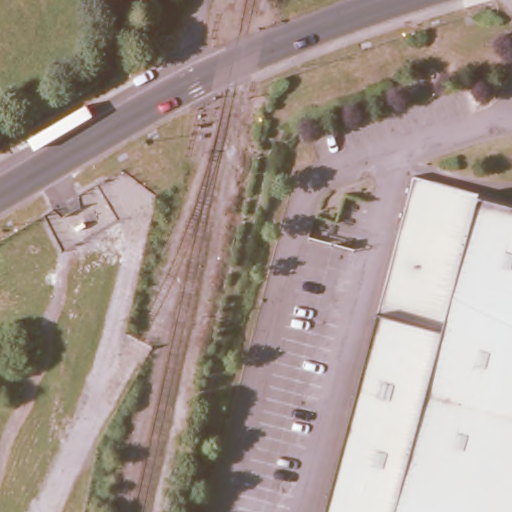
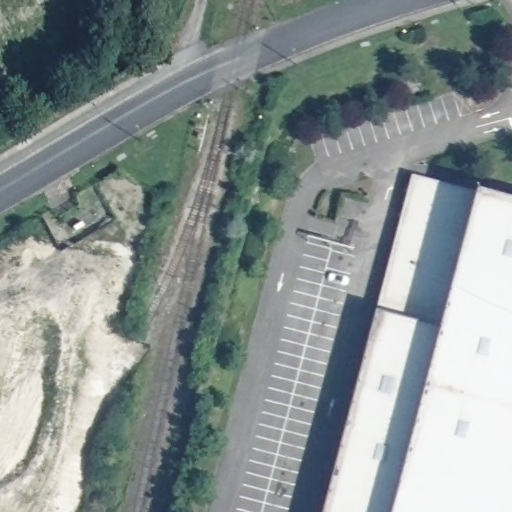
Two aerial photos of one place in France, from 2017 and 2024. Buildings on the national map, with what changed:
unchanged [(418,178),(484,195),(512,202),(512,512),(333,512),(383,316),(418,178)]

